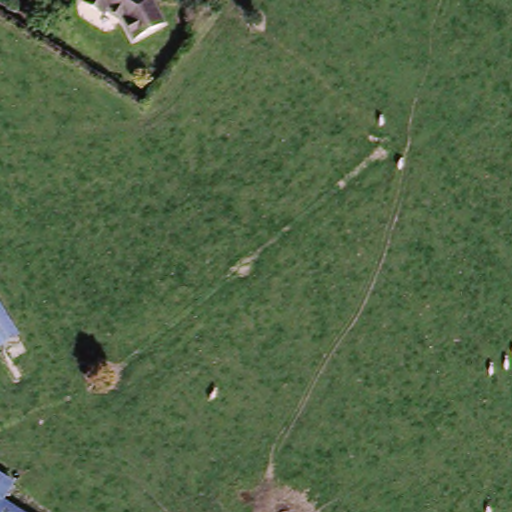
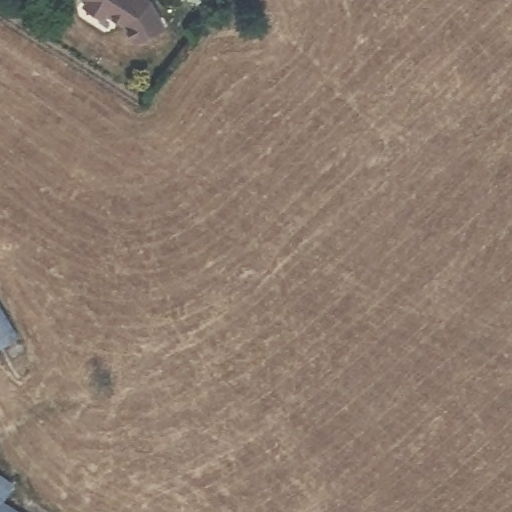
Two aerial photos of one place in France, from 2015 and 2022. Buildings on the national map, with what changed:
unchanged [(172,22),(141,42),(125,18),(115,7),(107,12),(100,3),(100,0),(159,0),(172,22)]
unchanged [(0,306),(15,335),(0,343),(0,306)]
unchanged [(0,498),(0,472),(15,480),(0,498)]
unchanged [(0,512),(0,499),(22,512),(0,512)]

